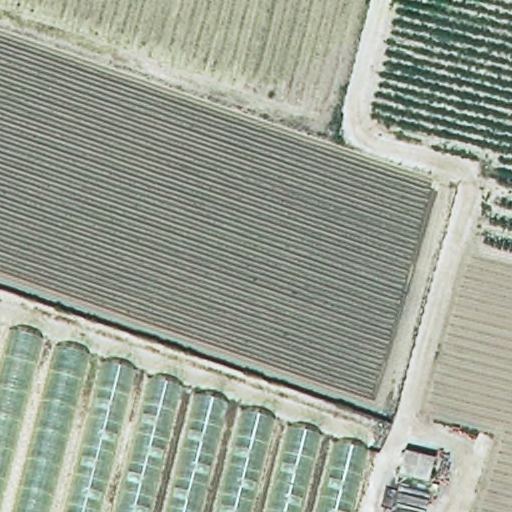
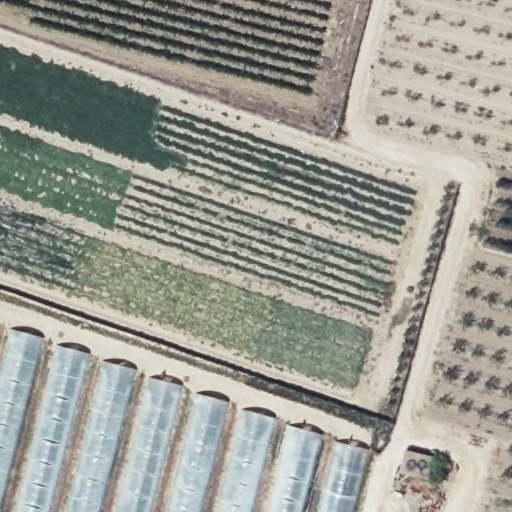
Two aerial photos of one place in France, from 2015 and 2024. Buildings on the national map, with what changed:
unchanged [(106,362),(375,452),(360,512),(0,512),(0,329),(104,368),(106,362)]
unchanged [(426,486),(397,477),(404,446),(435,458),(426,486)]

